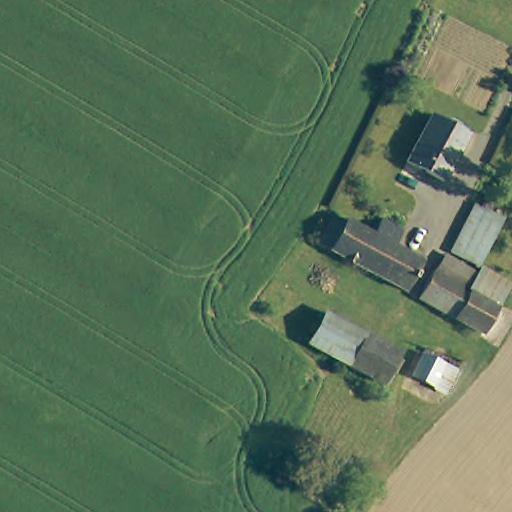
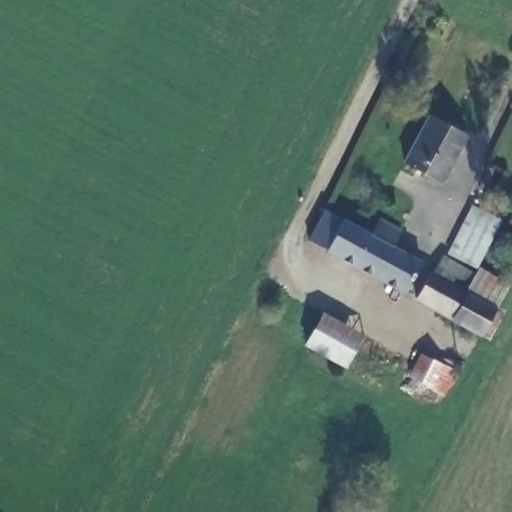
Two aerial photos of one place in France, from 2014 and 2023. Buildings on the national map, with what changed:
unchanged [(439,182),(402,160),(428,114),(464,134),(439,182)]
unchanged [(417,298),(432,272),(444,250),(447,252),(472,204),(501,219),(477,265),(477,266),(507,282),(478,332),(417,298)]
unchanged [(373,239),(380,225),(402,237),(395,252),(420,265),(406,296),(316,249),(329,226),(339,231),(343,222),(367,236),(373,239)]
unchanged [(303,335),(319,307),(399,352),(384,382),(382,382),(338,356),(303,335)]
unchanged [(428,379),(422,388),(409,381),(414,371),(411,370),(421,350),(444,361),(434,382),(428,379)]

